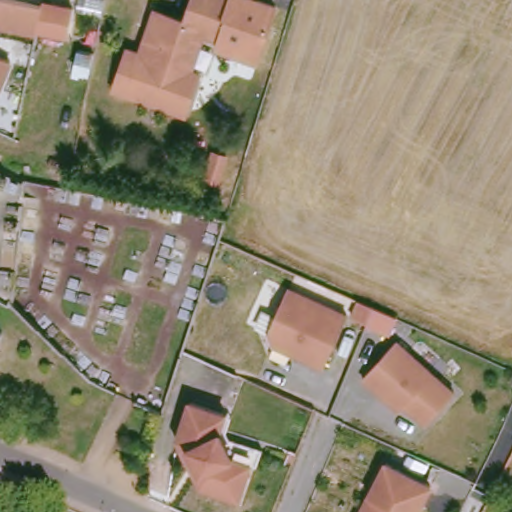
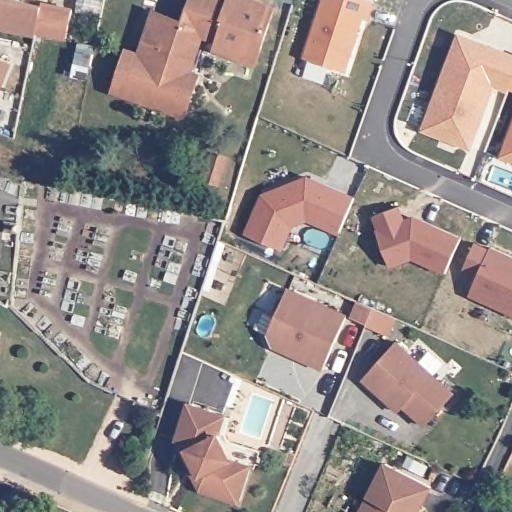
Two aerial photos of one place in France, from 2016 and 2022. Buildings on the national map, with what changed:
unchanged [(39,36),(0,28),(0,0),(8,0),(45,7),(39,36)]
unchanged [(217,50),(220,42),(205,36),(195,72),(202,74),(185,118),(107,95),(122,45),(137,48),(150,4),(184,13),(188,0),(267,0),(280,4),(262,63),(217,50)]
new [(307,58),(326,0),(369,0),(375,2),(370,20),(365,18),(347,72),(307,58)]
new [(424,128),(460,35),(512,53),(512,86),(495,81),(470,146),(424,128)]
unchanged [(0,55),(12,58),(0,96),(0,55)]
new [(504,156),(512,134),(512,159),(504,156)]
new [(247,232),(264,194),(270,197),(272,190),(302,179),(308,182),(310,176),(357,197),(340,233),(308,219),(294,224),(283,248),(247,232)]
new [(377,230),(380,229),(375,215),(400,205),(405,219),(410,217),(422,222),(423,219),(462,237),(447,272),(414,257),(392,266),(377,230)]
new [(470,295),(480,274),(465,268),(477,243),(491,249),(492,247),(512,257),(512,313),(470,295)]
unchanged [(272,344),(267,334),(287,287),(345,314),(322,367),(300,357),(292,354),(272,344)]
unchanged [(0,354),(0,317),(9,325),(5,348),(0,354)]
unchanged [(458,392),(426,428),(367,376),(400,340),(458,392)]
unchanged [(202,489),(179,439),(192,401),(227,413),(220,431),(232,457),(250,463),(239,501),(202,489)]
unchanged [(424,512),(360,512),(385,460),(437,486),(424,512)]

